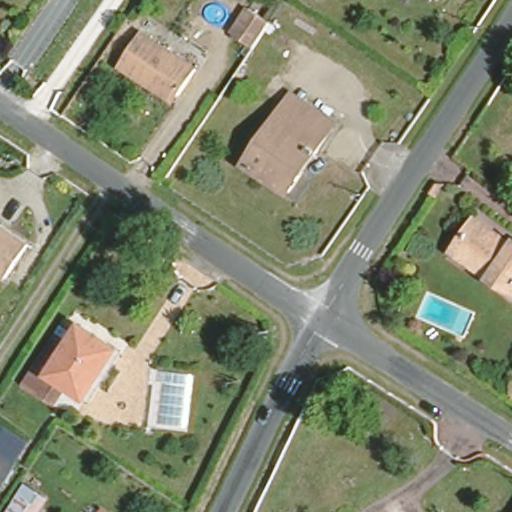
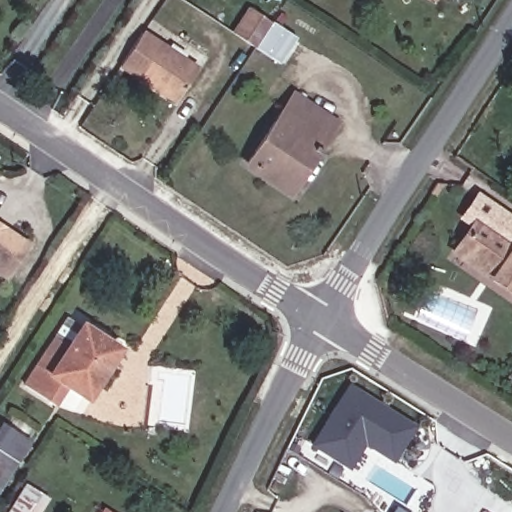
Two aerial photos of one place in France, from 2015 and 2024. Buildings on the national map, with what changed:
unchanged [(230,32),(247,5),(267,17),(248,45),(230,32)]
unchanged [(141,76),(115,60),(136,29),(189,64),(173,89),(167,95),(141,76)]
unchanged [(14,85),(0,76),(0,67),(5,59),(25,71),(15,85),(14,85)]
unchanged [(295,171),(299,175),(288,191),(244,162),(281,108),(291,92),(308,103),(335,122),(315,153),(309,150),(295,171)]
unchanged [(0,227),(0,221),(2,223),(0,227)]
unchanged [(5,271),(0,268),(0,227),(2,223),(26,238),(5,271)]
unchanged [(457,245),(471,223),(478,228),(512,250),(512,249),(512,282),(464,250),(457,245)]
unchanged [(71,377),(57,397),(27,377),(56,332),(71,340),(86,318),(122,343),(91,390),(71,377)]
new [(352,383),(417,425),(396,459),(367,441),(351,466),(315,443),(352,383)]
unchanged [(0,446),(16,455),(0,482),(0,446)]
unchanged [(34,512),(1,512),(24,475),(47,492),(34,512)]
unchanged [(97,502),(112,512),(90,512),(97,502)]

